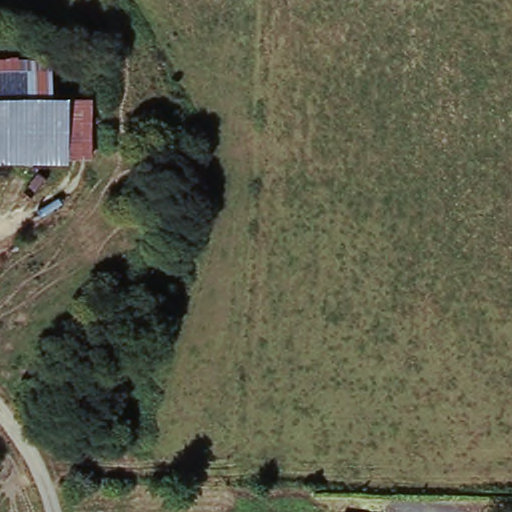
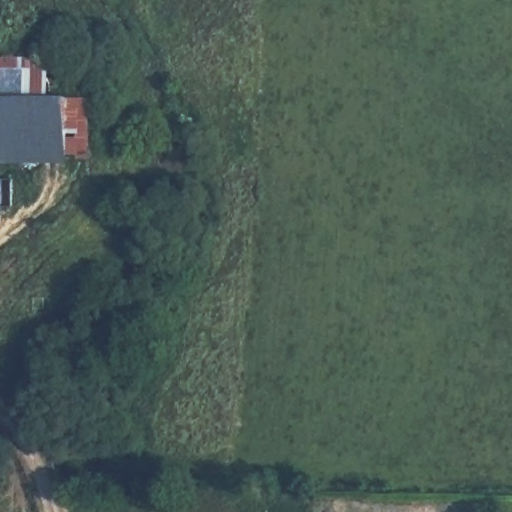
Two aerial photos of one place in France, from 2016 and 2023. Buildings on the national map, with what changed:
unchanged [(60,63),(59,103),(56,145),(0,145),(0,62),(60,63)]
unchanged [(56,145),(59,103),(67,103),(66,172),(0,171),(0,145),(56,145)]

